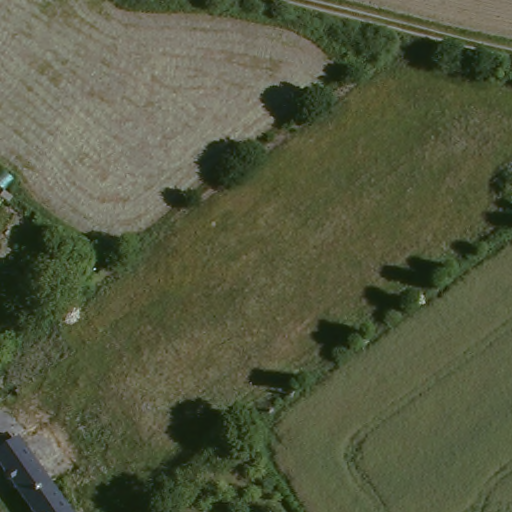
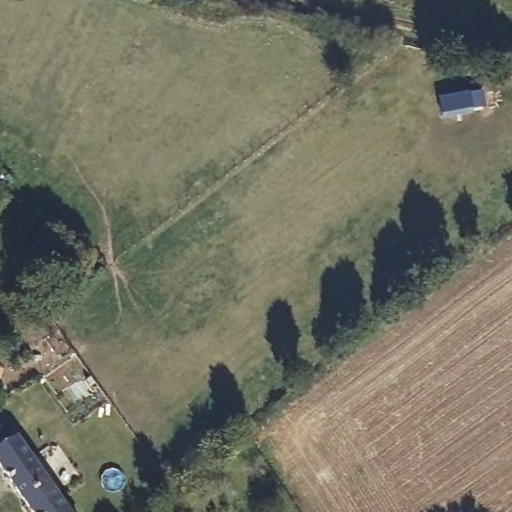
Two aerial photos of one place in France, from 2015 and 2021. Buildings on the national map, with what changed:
unchanged [(13,434),(21,444),(25,441),(29,448),(73,512),(36,512),(0,459),(0,442),(13,434)]

